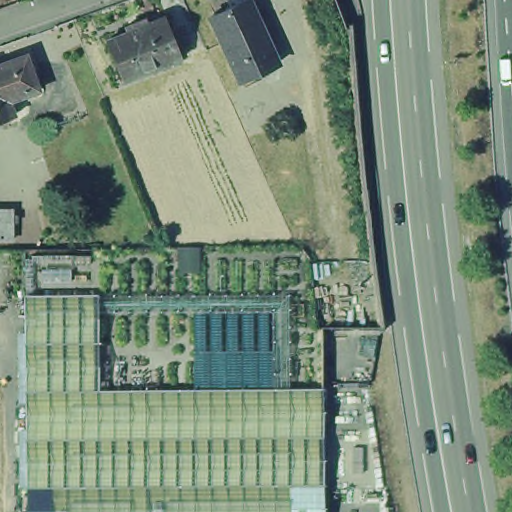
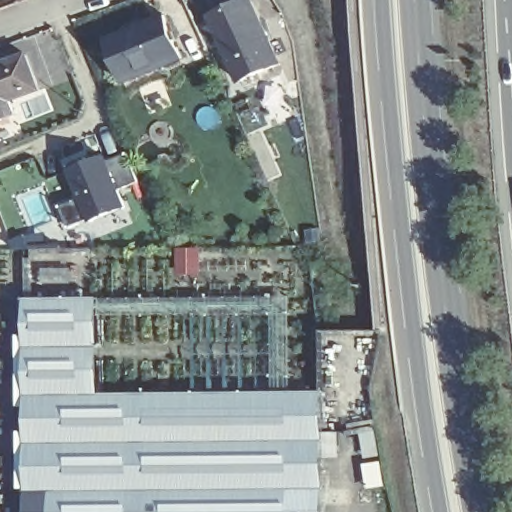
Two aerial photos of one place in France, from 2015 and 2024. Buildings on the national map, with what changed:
unchanged [(274,66),(236,84),(205,20),(243,3),(274,66)]
unchanged [(157,66),(119,81),(102,41),(123,32),(120,26),(142,18),(144,24),(162,17),(176,53),(177,57),(157,66)]
unchanged [(30,89),(2,99),(7,114),(2,116),(4,124),(0,126),(0,61),(17,54),(30,89)]
new [(69,167),(89,158),(90,163),(97,160),(105,157),(107,162),(127,153),(140,182),(119,190),(127,208),(92,222),(91,220),(70,229),(62,208),(82,199),(69,167)]
demolished [(5,241),(0,242),(0,212),(5,211),(5,241)]
unchanged [(92,301),(94,380),(94,397),(135,397),(219,396),(318,395),(319,512),(21,512),(20,382),(19,302),(92,301)]

